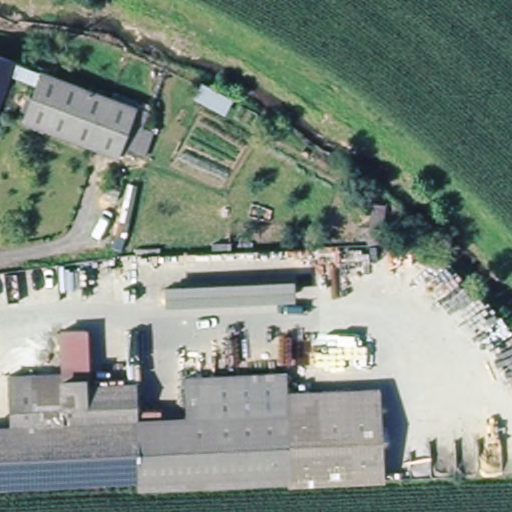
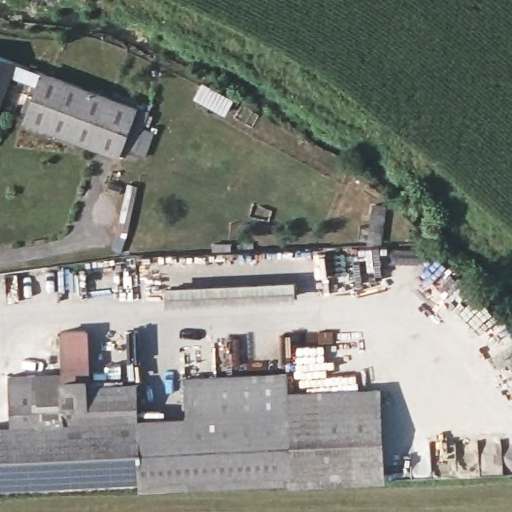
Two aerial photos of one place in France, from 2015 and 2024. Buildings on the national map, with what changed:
unchanged [(40,74),(36,86),(9,77),(0,101),(0,60),(40,74)]
unchanged [(40,74),(147,110),(136,145),(124,140),(116,157),(24,123),(36,86),(40,74)]
unchanged [(164,284),(295,278),(295,300),(164,305),(164,284)]
unchanged [(89,331),(89,382),(60,383),(57,333),(89,331)]
unchanged [(283,375),(285,400),(282,400),(282,406),(188,410),(185,380),(283,375)]
unchanged [(155,482),(135,484),(135,475),(0,485),(0,425),(9,424),(9,385),(34,384),(60,383),(89,382),(130,381),(131,413),(146,412),(155,482)]
unchanged [(188,410),(282,406),(282,400),(285,400),(375,396),(379,470),(155,482),(146,412),(188,410)]

